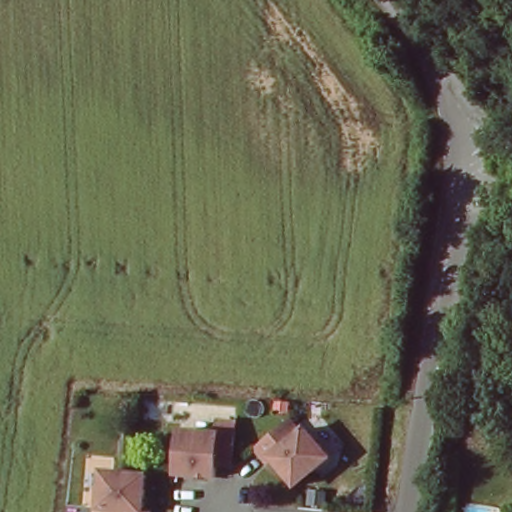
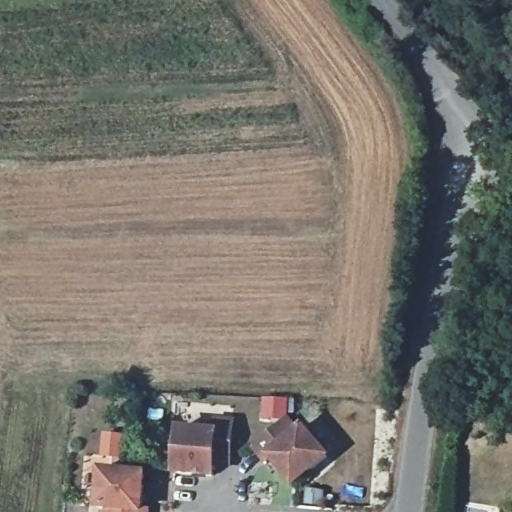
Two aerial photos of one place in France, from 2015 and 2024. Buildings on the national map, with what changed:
unchanged [(301,434),(306,429),(331,457),(299,486),(284,470),(274,460),(270,464),(259,452),(291,423),(301,434)]
unchanged [(181,478),(183,434),(220,436),(220,424),(236,426),(234,468),(219,467),(218,480),(181,478)]
unchanged [(148,498),(147,511),(153,512),(110,512),(110,510),(104,510),(106,473),(149,475),(148,498)]

